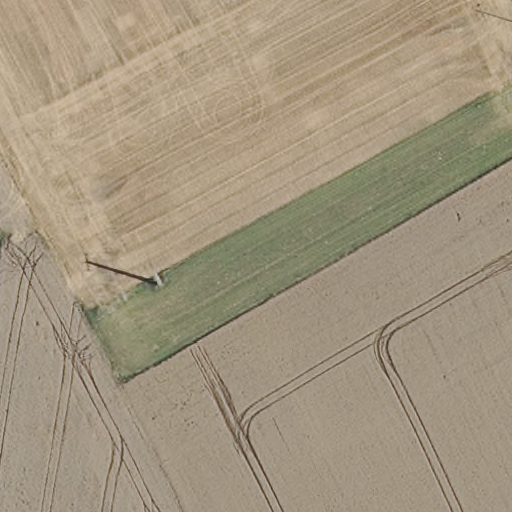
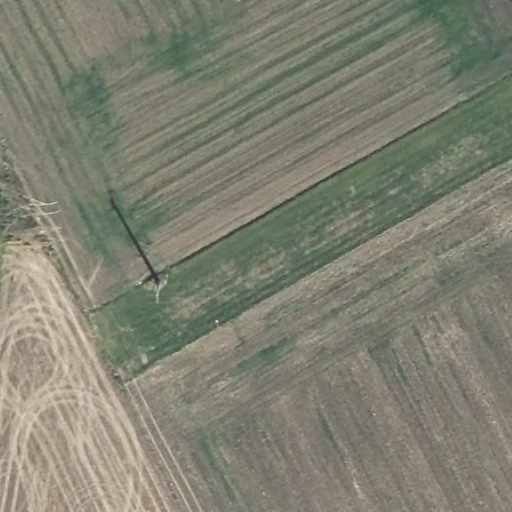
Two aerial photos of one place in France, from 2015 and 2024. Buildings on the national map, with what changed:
[]

